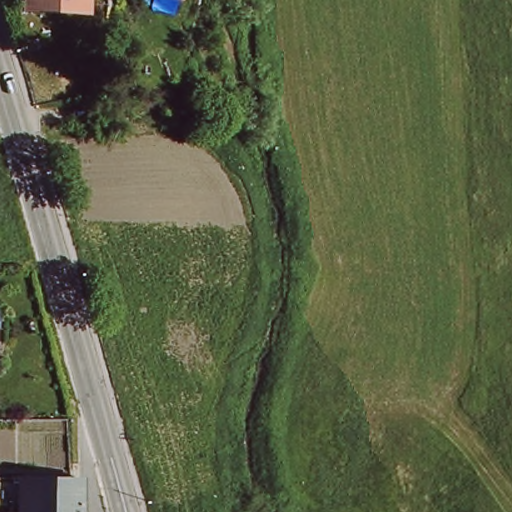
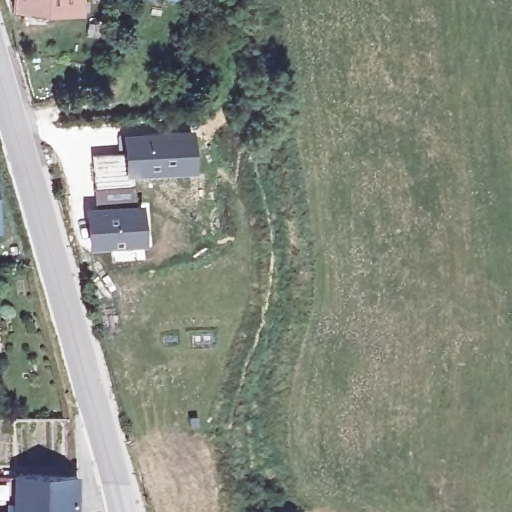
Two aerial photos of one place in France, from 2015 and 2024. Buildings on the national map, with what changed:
unchanged [(22,0),(84,0),(83,15),(22,11),(22,0)]
new [(191,125),(195,170),(132,176),(127,177),(124,152),(122,132),(191,125)]
new [(92,155),(124,152),(127,177),(132,176),(133,183),(136,183),(138,202),(143,202),(146,244),(90,250),(86,206),(95,205),(94,187),(92,155)]
new [(0,230),(0,217),(2,230),(0,230)]
unchanged [(73,473),(76,473),(78,512),(22,512),(21,477),(73,473)]

